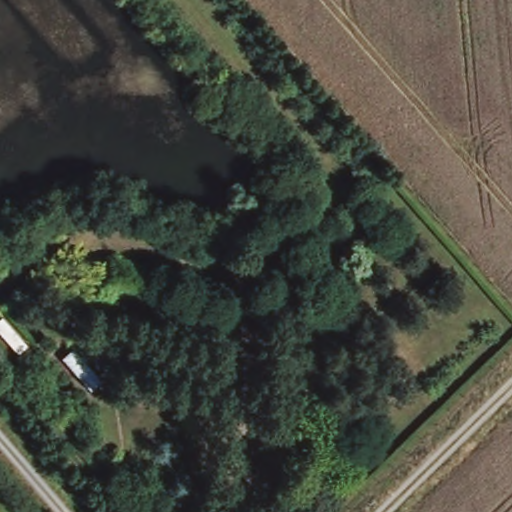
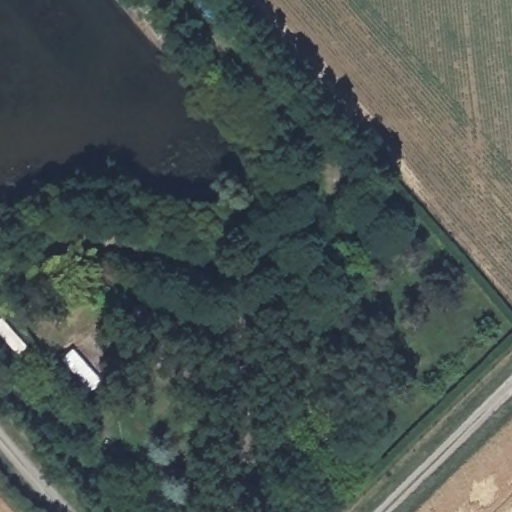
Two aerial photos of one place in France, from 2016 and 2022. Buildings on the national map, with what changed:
unchanged [(24,358),(0,335),(0,324),(7,318),(33,347),(24,358)]
unchanged [(96,397),(65,361),(80,350),(108,383),(96,397)]

